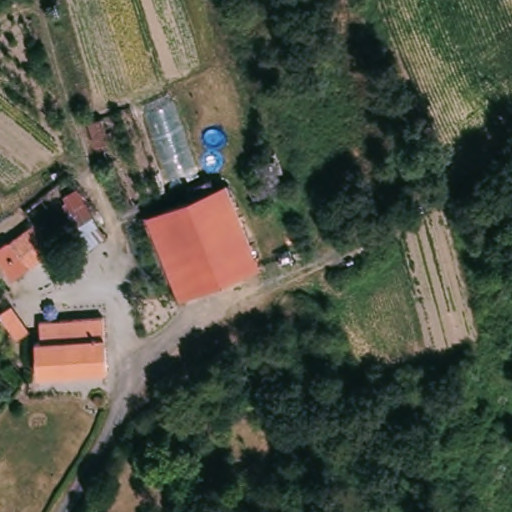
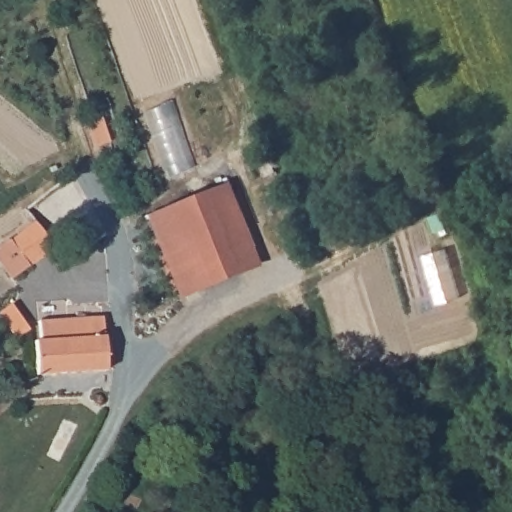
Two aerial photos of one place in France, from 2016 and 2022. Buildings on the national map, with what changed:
unchanged [(109,143),(95,147),(87,122),(100,119),(109,143)]
unchanged [(256,267),(182,297),(150,216),(224,186),(256,267)]
unchanged [(82,253),(67,235),(93,215),(105,235),(82,253)]
unchanged [(0,263),(0,245),(5,241),(7,243),(35,220),(55,247),(13,279),(0,263)]
unchanged [(18,338),(0,315),(0,312),(10,304),(30,329),(18,338)]
unchanged [(105,368),(37,373),(35,342),(42,341),(41,322),(102,318),(105,368)]

